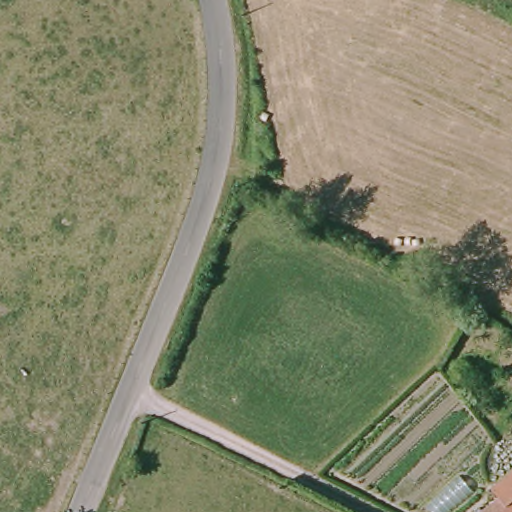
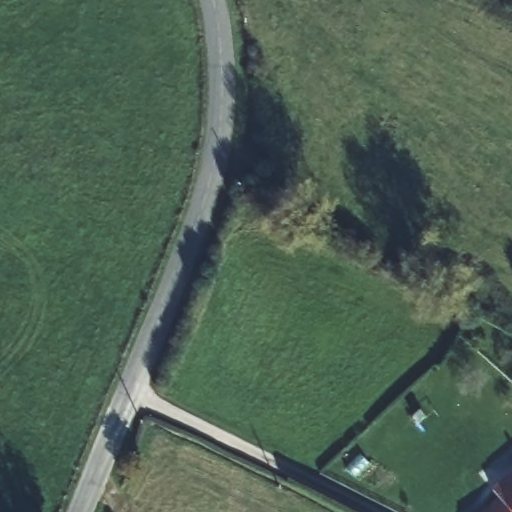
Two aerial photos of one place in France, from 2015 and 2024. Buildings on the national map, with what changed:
unchanged [(512,470),(512,512),(482,512),(501,496),(492,485),(512,470)]

